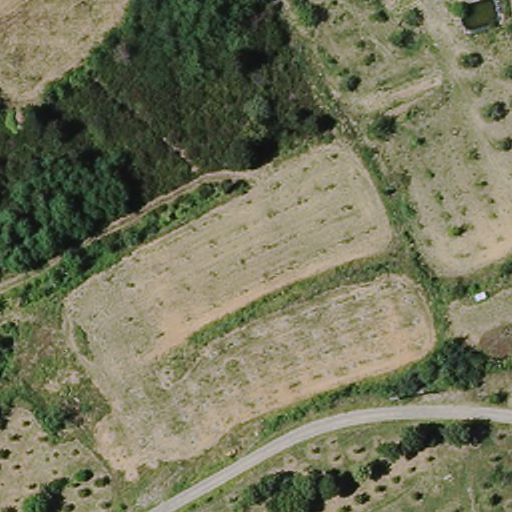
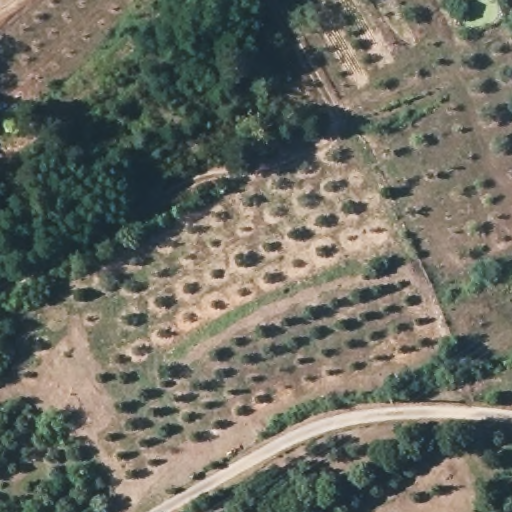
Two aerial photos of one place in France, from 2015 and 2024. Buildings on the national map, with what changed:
unchanged [(8,120),(21,110),(30,120),(16,133),(8,120)]

